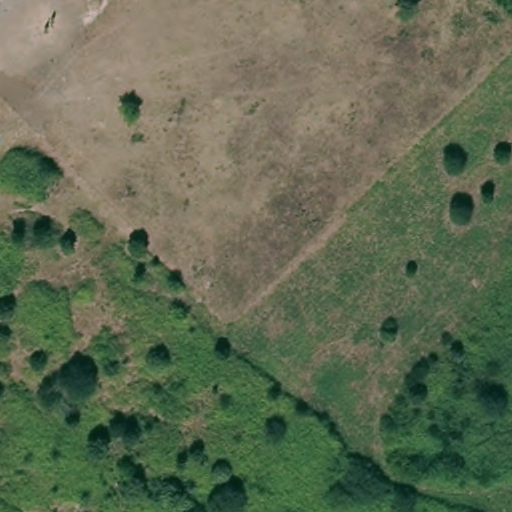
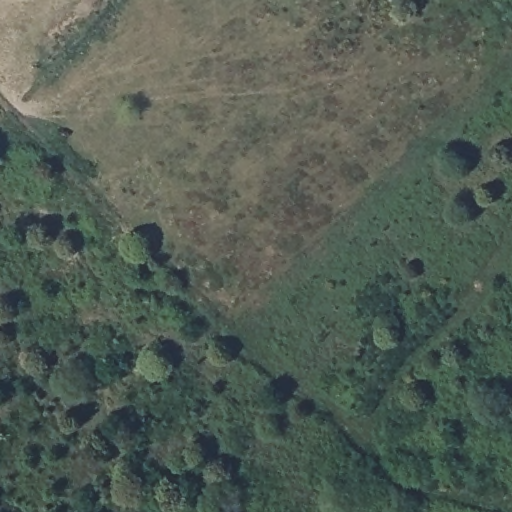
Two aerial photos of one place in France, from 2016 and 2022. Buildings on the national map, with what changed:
[]

